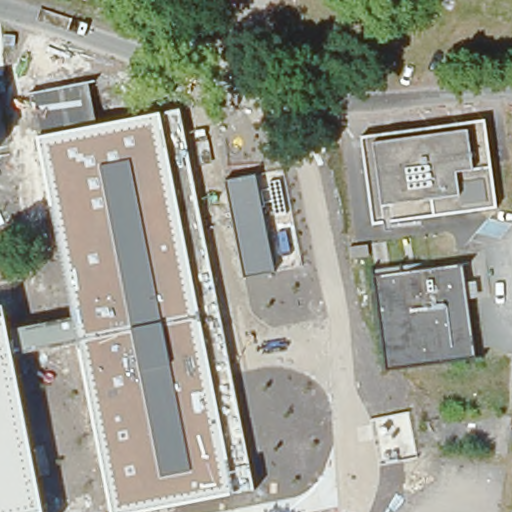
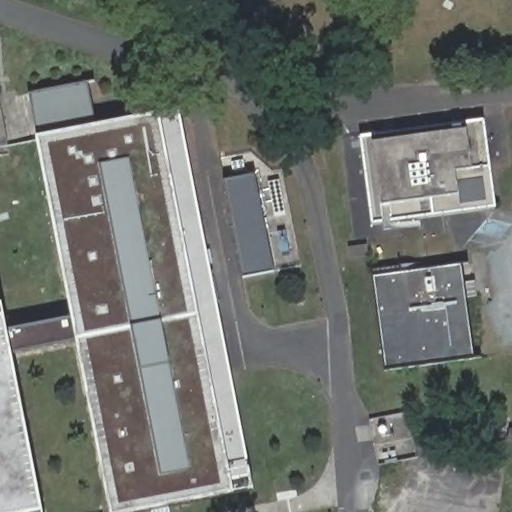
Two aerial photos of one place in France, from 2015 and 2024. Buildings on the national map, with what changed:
unchanged [(1,306),(8,333),(74,318),(38,136),(31,94),(87,82),(98,125),(159,114),(180,109),(253,486),(232,493),(137,512),(111,512),(80,342),(14,358),(44,512),(0,512),(0,306),(1,306)]
unchanged [(484,122),(496,210),(373,226),(361,138),(484,122)]
unchanged [(274,270),(245,277),(226,182),(255,175),(274,270)]
unchanged [(460,262),(475,356),(384,368),(370,273),(460,262)]

